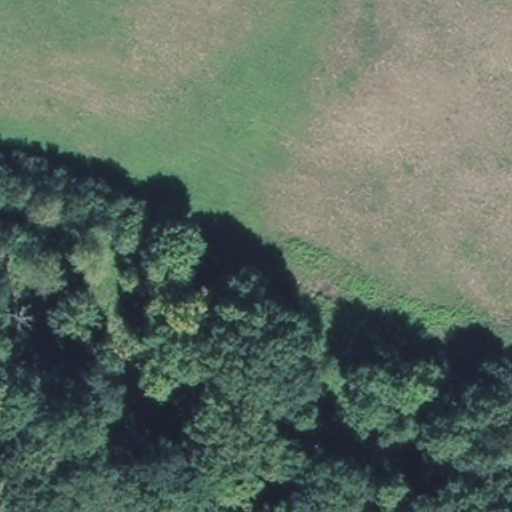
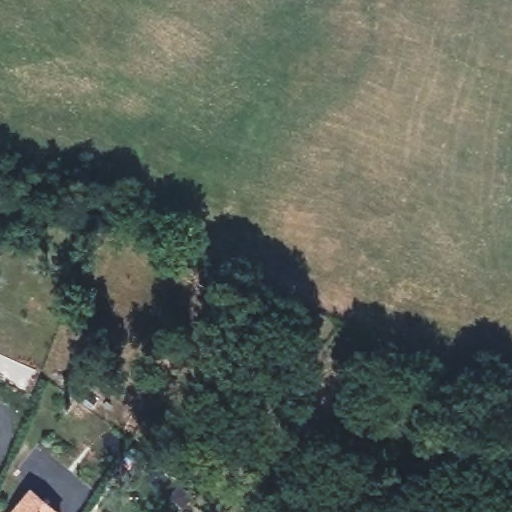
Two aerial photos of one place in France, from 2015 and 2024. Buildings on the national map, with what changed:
new [(31,487),(61,512),(11,512),(31,487)]

